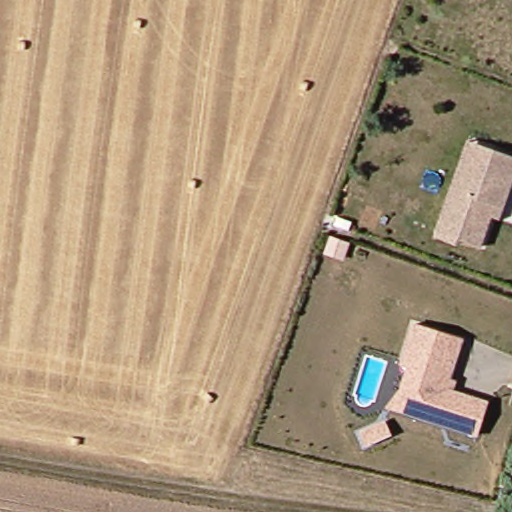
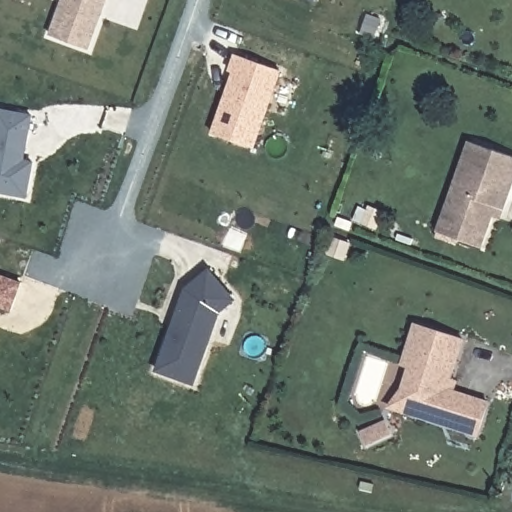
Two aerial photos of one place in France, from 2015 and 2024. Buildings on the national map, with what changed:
new [(107,0),(90,48),(53,34),(65,0),(107,0)]
new [(312,0),(315,0),(315,1),(312,0)]
new [(235,75),(230,74),(237,55),(282,71),(255,149),(213,134),(235,75)]
new [(22,160),(31,163),(25,197),(0,193),(0,111),(29,116),(22,160)]
unchanged [(497,210),(487,242),(442,227),(458,175),(473,135),(495,143),(512,148),(512,192),(508,204),(505,212),(497,210)]
unchanged [(352,254),(335,250),(339,235),(356,240),(352,254)]
new [(175,317),(185,290),(207,270),(232,299),(218,313),(194,384),(157,371),(172,327),(175,317)]
new [(12,313),(0,308),(0,274),(25,283),(12,313)]
unchanged [(393,408),(405,364),(419,324),(466,339),(454,380),(460,382),(457,392),(492,402),(484,434),(422,416),(409,413),(393,408)]

